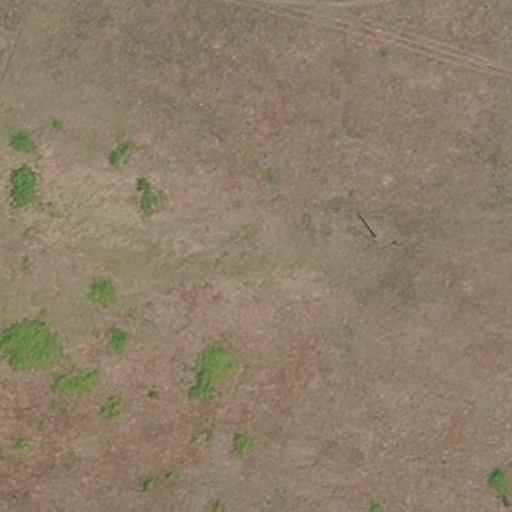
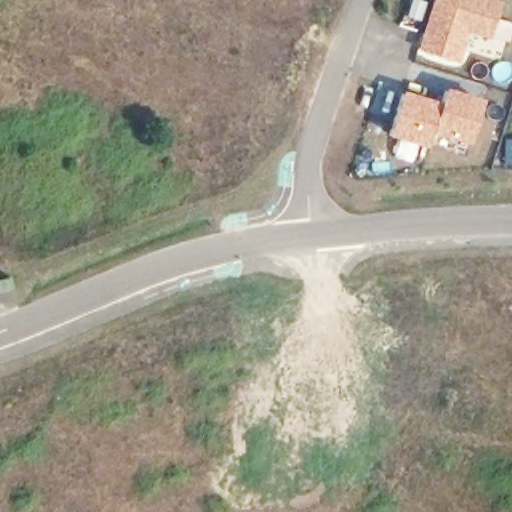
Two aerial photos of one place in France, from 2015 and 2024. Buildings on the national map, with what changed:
new [(493,41),(471,34),(461,64),(417,51),(434,0),(497,0),(503,2),(493,41)]
new [(440,107),(445,93),(483,104),(471,144),(431,132),(426,148),(388,135),(402,96),(440,107)]

